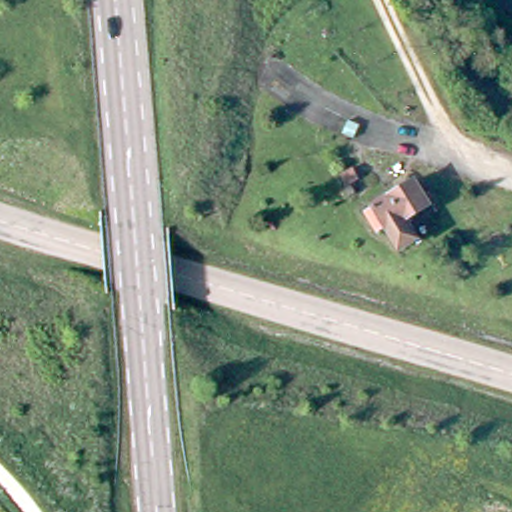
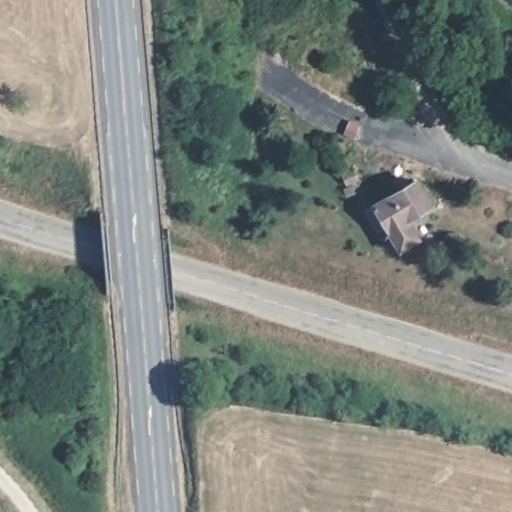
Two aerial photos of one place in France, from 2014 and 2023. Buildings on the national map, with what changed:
unchanged [(355,180),(345,185),(340,175),(351,170),(355,180)]
unchanged [(440,201),(417,215),(429,234),(410,245),(395,220),(387,226),(374,206),(425,175),(440,201)]

